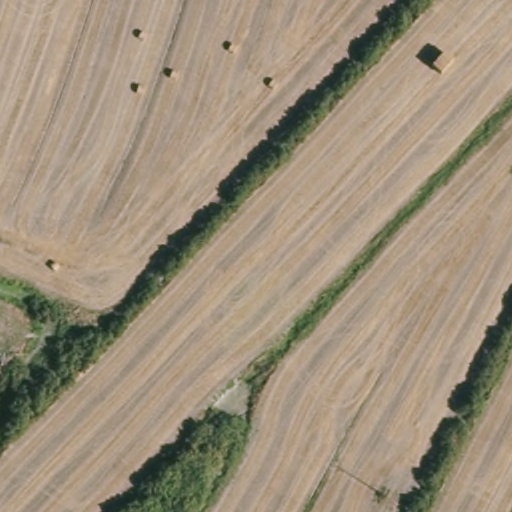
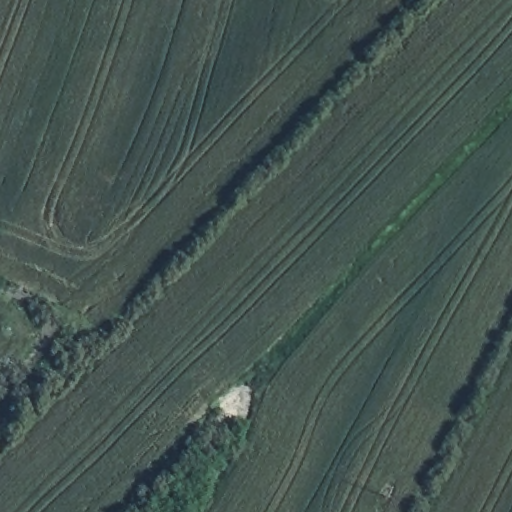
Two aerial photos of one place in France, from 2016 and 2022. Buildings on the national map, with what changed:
[]

